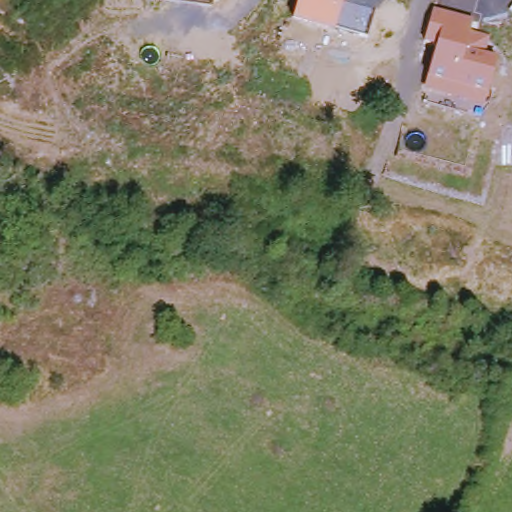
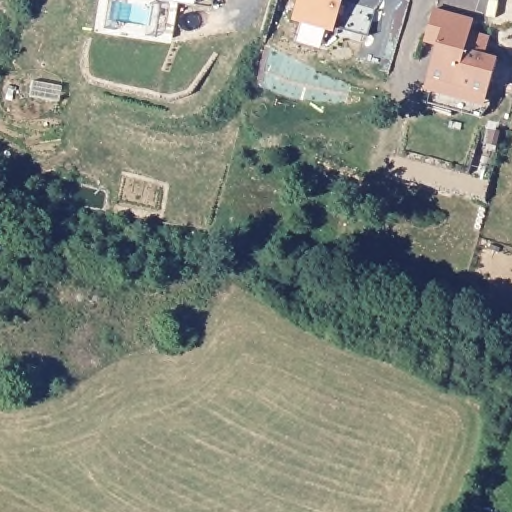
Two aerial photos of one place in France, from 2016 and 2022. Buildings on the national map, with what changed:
unchanged [(298,0),(349,0),(373,11),(365,38),(335,25),(333,35),(292,21),(298,0)]
unchanged [(473,16),(470,28),(491,33),(485,54),(496,56),(484,102),(423,85),(435,44),(423,41),(433,5),(473,16)]

